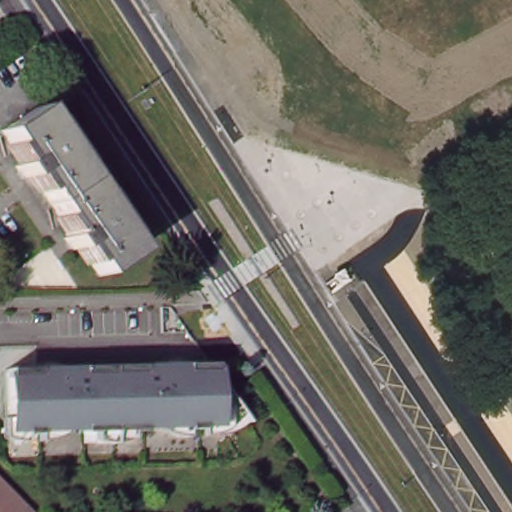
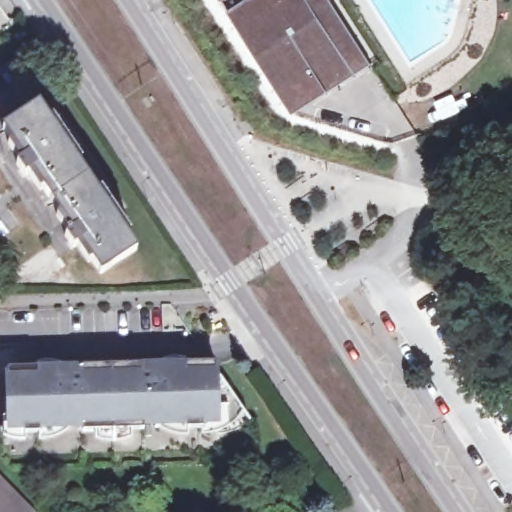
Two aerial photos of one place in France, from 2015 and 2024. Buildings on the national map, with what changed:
new [(287,106),(224,0),(329,0),(367,60),(287,106)]
unchanged [(24,161),(3,131),(40,106),(103,200),(135,248),(100,273),(80,242),(73,247),(65,235),(72,231),(67,223),(31,172),(25,176),(17,165),(24,161)]
unchanged [(99,431),(83,432),(83,426),(55,426),(55,437),(40,433),(25,433),(10,438),(10,428),(9,368),(37,367),(82,366),(110,365),(142,364),(185,363),(215,362),(215,374),(217,374),(225,386),(236,401),(250,421),(217,438),(202,429),(187,429),(172,434),(172,424),(170,424),(151,424),(144,424),(145,430),(128,431),(114,441),(99,431)]
demolished [(487,469),(501,460),(504,464),(510,472),(512,471),(512,507),(487,469)]
unchanged [(0,472),(39,512),(0,512),(0,472)]

